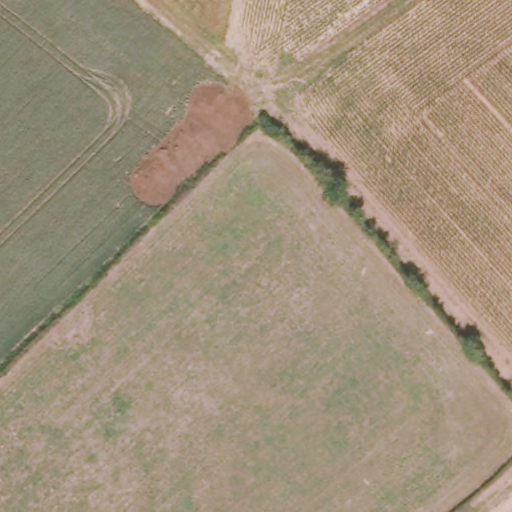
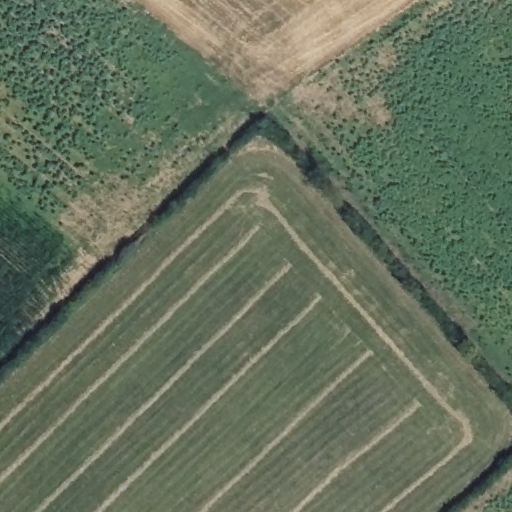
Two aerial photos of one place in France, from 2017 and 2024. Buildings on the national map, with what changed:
[]

